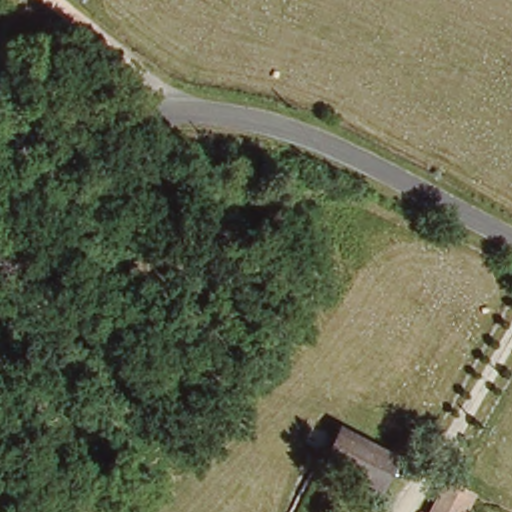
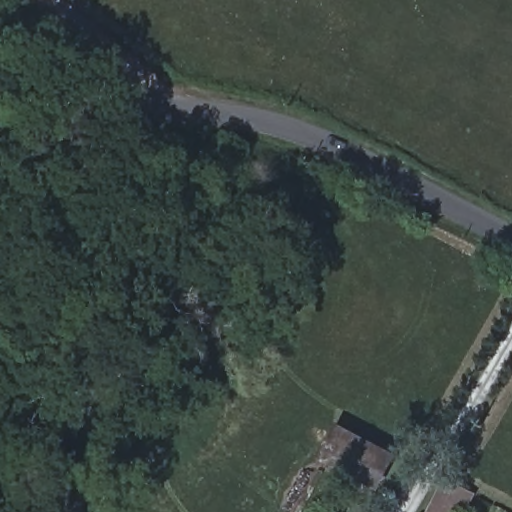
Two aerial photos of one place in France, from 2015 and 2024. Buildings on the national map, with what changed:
unchanged [(334,426),(371,445),(390,454),(372,486),(346,471),(320,456),(334,426)]
unchanged [(475,493),(464,512),(431,512),(449,479),(475,493)]

